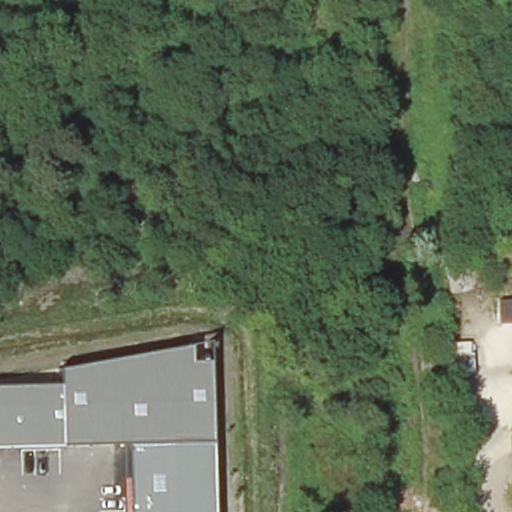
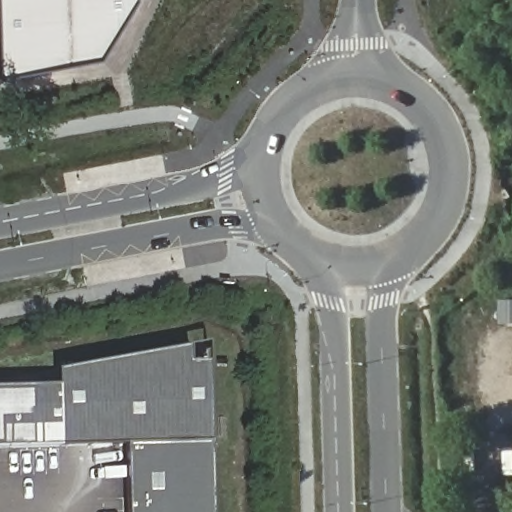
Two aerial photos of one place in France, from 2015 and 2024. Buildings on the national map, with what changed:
new [(0,16),(0,0),(134,0),(99,60),(69,64),(2,76),(0,16)]
unchanged [(127,445),(0,449),(0,386),(58,385),(57,369),(187,346),(187,362),(206,360),(211,512),(128,512),(127,445)]

